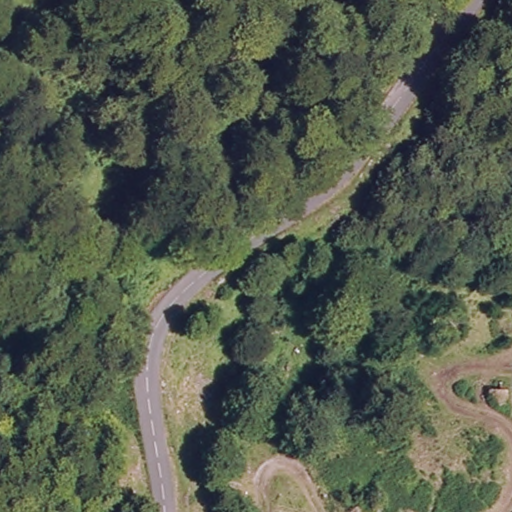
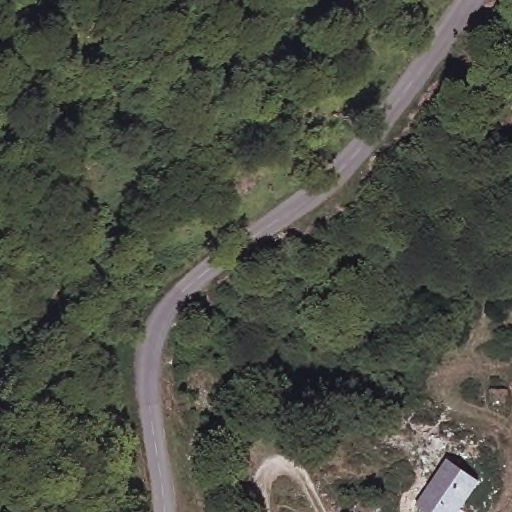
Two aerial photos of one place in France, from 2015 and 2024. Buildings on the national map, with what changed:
new [(448,457),(481,481),(461,512),(426,512),(414,503),(448,457)]

